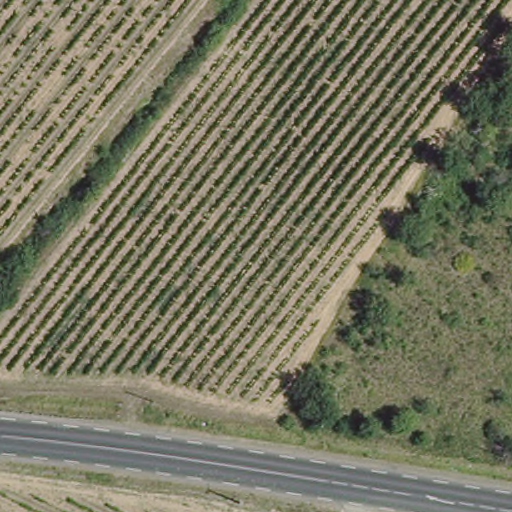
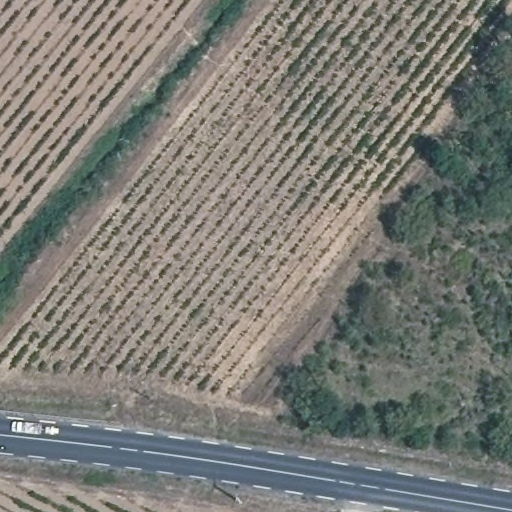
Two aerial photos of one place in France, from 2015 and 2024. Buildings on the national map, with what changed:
unchanged [(504,101),(491,124),(472,109),(483,89),(504,101)]

